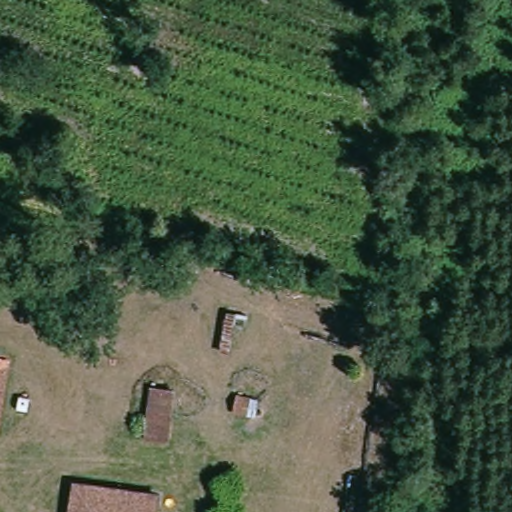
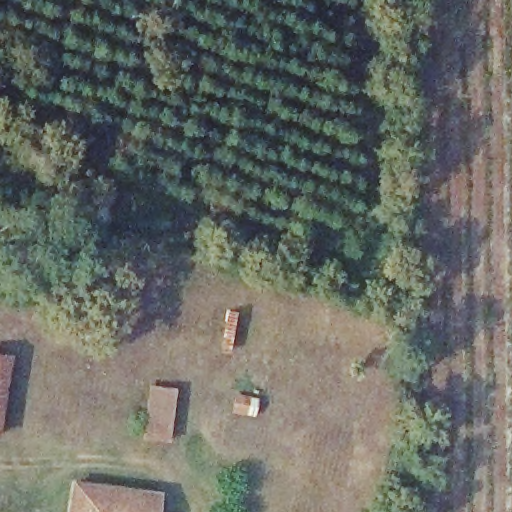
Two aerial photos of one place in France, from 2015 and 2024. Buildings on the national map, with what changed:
unchanged [(15,355),(4,439),(0,438),(0,353),(15,355)]
unchanged [(152,383),(177,387),(172,445),(146,440),(152,383)]
unchanged [(141,485),(138,512),(72,512),(77,477),(141,485)]
unchanged [(159,487),(155,512),(138,512),(141,485),(159,487)]

